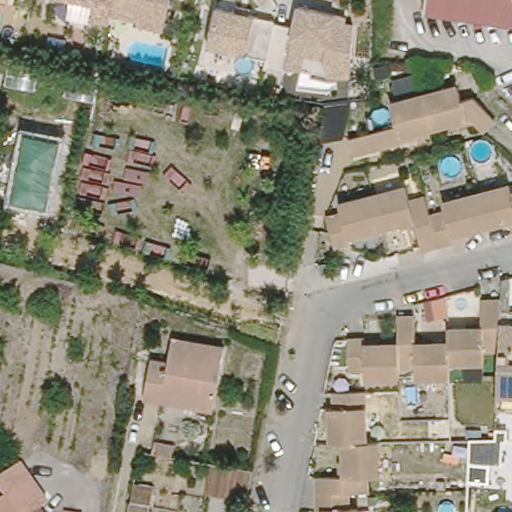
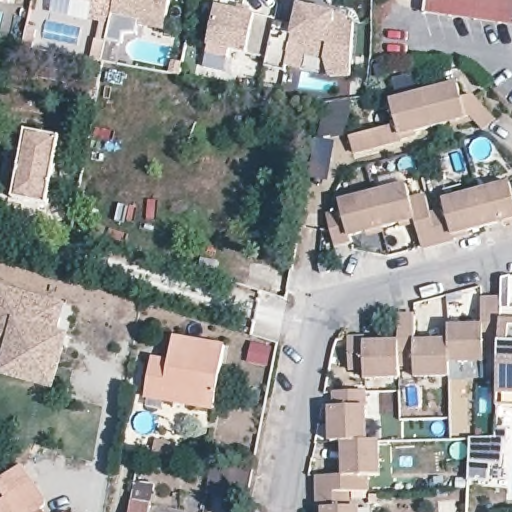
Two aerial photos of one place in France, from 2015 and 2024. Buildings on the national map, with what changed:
unchanged [(111,24),(92,20),(95,1),(92,0),(172,0),(168,21),(114,12),(111,24)]
unchanged [(421,2),(421,0),(512,0),(512,14),(421,2)]
unchanged [(329,55),(305,56),(303,67),(268,62),(271,53),(212,42),(220,3),(298,20),(301,1),(349,11),(348,20),(353,19),(354,74),(328,72),(329,55)]
unchanged [(421,2),(512,14),(512,27),(419,14),(421,2)]
unchanged [(458,99),(471,96),(491,119),(478,130),(467,117),(430,127),(421,92),(453,83),(458,99)]
unchanged [(430,127),(397,136),(399,142),(350,156),(345,137),(392,125),(386,102),(421,92),(430,127)]
unchanged [(23,127),(65,135),(50,211),(8,202),(23,127)]
unchanged [(432,224),(440,253),(422,257),(415,230),(384,238),(375,203),(408,194),(412,210),(427,205),(432,224)]
unchanged [(488,237),(479,202),(511,194),(512,197),(512,230),(488,237)]
unchanged [(488,237),(453,246),(454,250),(440,253),(432,224),(446,220),(444,212),(479,202),(488,237)]
unchanged [(384,238),(351,247),(352,252),(335,256),(326,226),(341,222),(340,213),(375,203),(384,238)]
new [(0,373),(5,353),(0,352),(0,286),(65,304),(58,332),(68,336),(55,390),(0,377),(0,373)]
unchanged [(450,341),(449,327),(483,326),(481,299),(503,298),(502,308),(501,350),(485,351),(486,362),(451,363),(450,341)]
unchanged [(499,395),(501,350),(502,308),(512,309),(512,403),(498,402),(499,395)]
unchanged [(451,363),(451,377),(416,378),(416,366),(400,367),(399,342),(398,316),(416,315),(417,342),(450,341),(451,363)]
unchanged [(146,392),(148,377),(151,353),(169,357),(173,332),(226,341),(216,398),(215,403),(146,392)]
unchanged [(400,367),(401,378),(366,380),(365,368),(350,370),(348,338),(364,337),(364,344),(399,342),(400,367)]
unchanged [(368,441),(343,442),(331,442),(330,407),(335,407),(334,392),(366,391),(368,441)]
unchanged [(173,456),(153,452),(156,440),(175,443),(173,456)]
unchanged [(343,442),(368,441),(379,441),(381,476),(368,476),(369,492),(349,493),(317,495),(316,476),(345,475),(343,442)]
unchanged [(0,504),(6,500),(0,490),(0,481),(23,465),(47,498),(48,506),(42,510),(44,512),(0,512),(0,504)]
unchanged [(248,506),(206,498),(211,467),(254,475),(248,506)]
unchanged [(133,487),(155,491),(151,512),(129,512),(133,487)]
unchanged [(323,508),(318,508),(317,495),(349,493),(350,507),(358,507),(358,512),(323,512),(323,508)]

